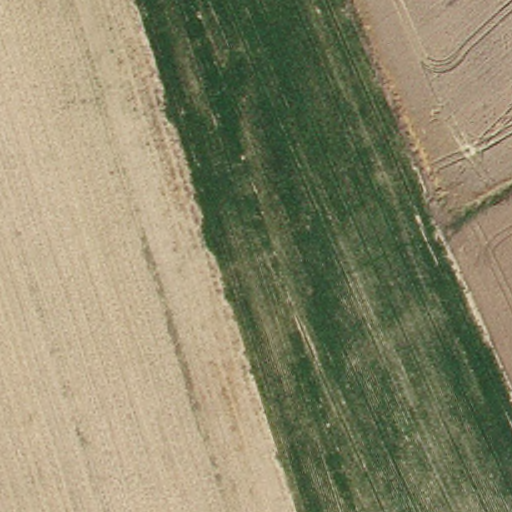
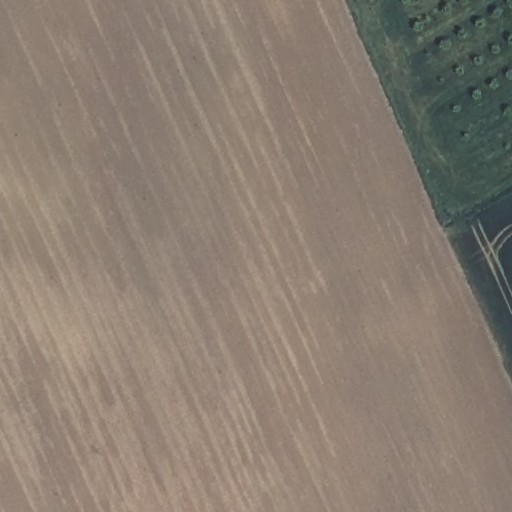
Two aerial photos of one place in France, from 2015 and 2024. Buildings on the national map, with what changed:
[]

